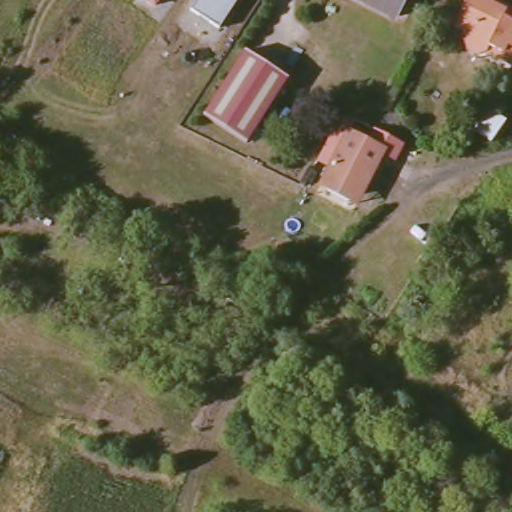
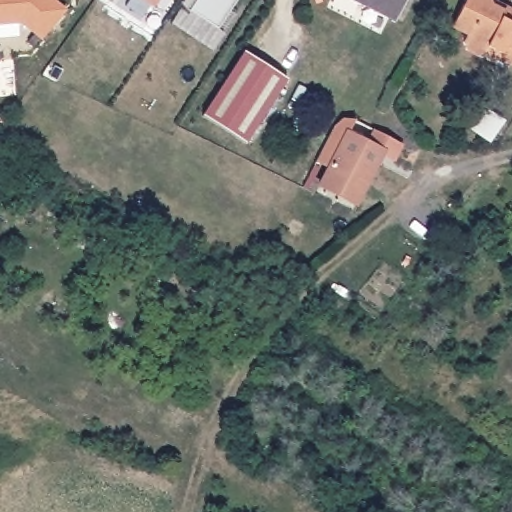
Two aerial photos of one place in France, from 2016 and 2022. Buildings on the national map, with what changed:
new [(19,23),(0,25),(0,0),(54,0),(65,10),(42,41),(19,23)]
unchanged [(146,0),(159,0),(155,6),(146,0)]
unchanged [(190,7),(194,0),(235,0),(217,25),(190,7)]
unchanged [(356,0),(404,0),(394,19),(356,0)]
unchanged [(482,56),(475,52),(470,50),(468,42),(472,34),(458,26),(472,0),(501,0),(505,2),(512,7),(512,67),(490,54),(482,56)]
unchanged [(288,80),(247,145),(203,117),(245,52),(288,80)]
unchanged [(477,129),(490,110),(507,121),(494,141),(477,129)]
unchanged [(360,196),(325,179),(347,135),(382,152),(360,196)]

